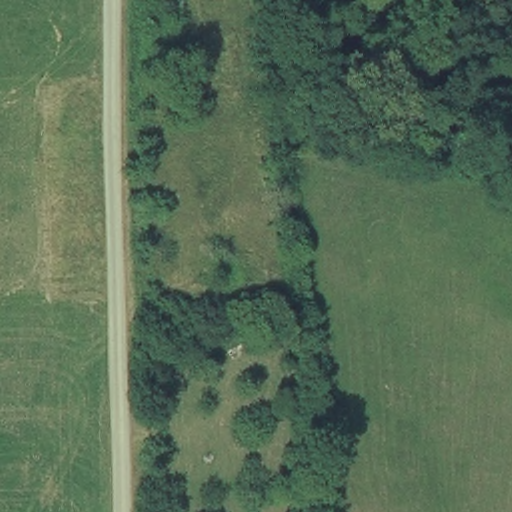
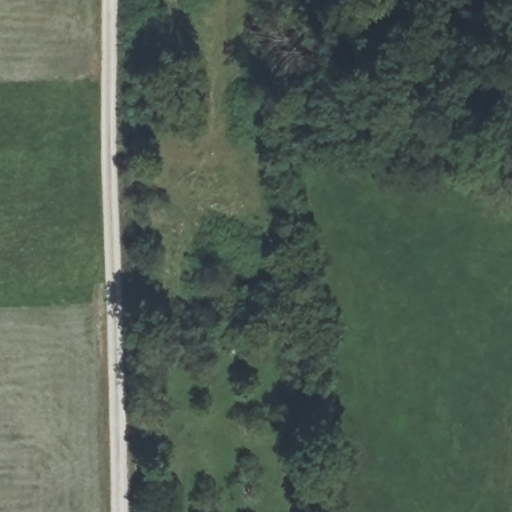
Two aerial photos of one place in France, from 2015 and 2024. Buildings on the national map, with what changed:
unchanged [(173,14),(177,54),(138,57),(134,17),(173,14)]

